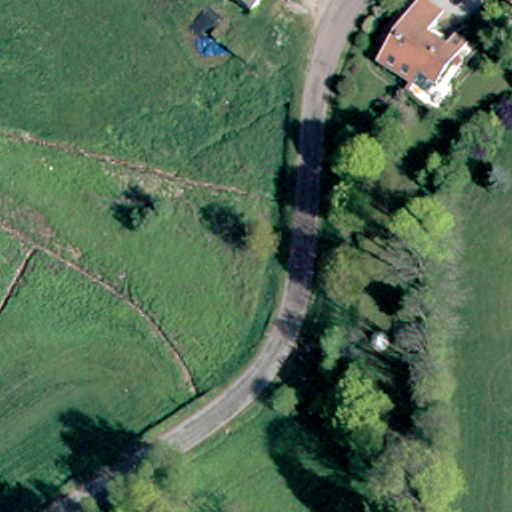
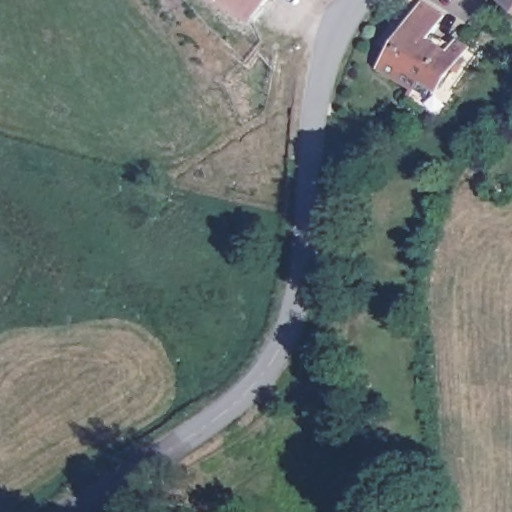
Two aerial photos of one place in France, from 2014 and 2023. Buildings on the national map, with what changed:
unchanged [(235,0),(272,0),(260,17),(235,0)]
unchanged [(384,60),(424,9),(431,0),(432,0),(454,17),(447,26),(436,41),(453,55),(461,47),(473,57),(441,96),(427,84),(421,91),(384,60)]
unchanged [(509,0),(512,0),(512,2),(509,0)]

